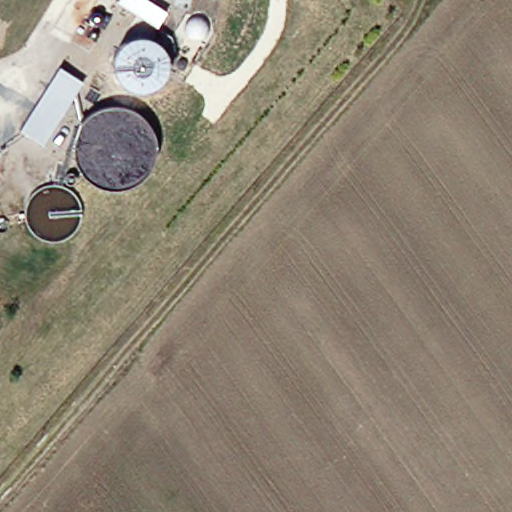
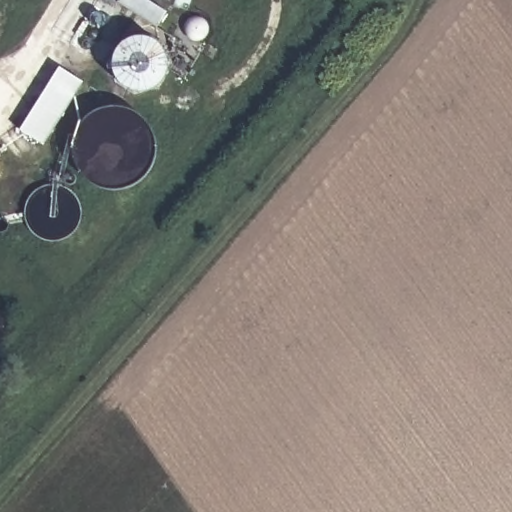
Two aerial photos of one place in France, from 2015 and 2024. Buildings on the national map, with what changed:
unchanged [(159,4),(150,18),(120,0),(152,0),(159,4)]
unchanged [(52,59),(74,73),(35,135),(12,121),(24,103),(45,69),(52,59)]

